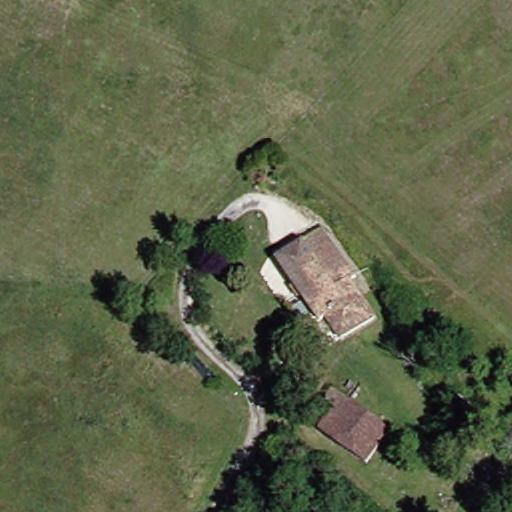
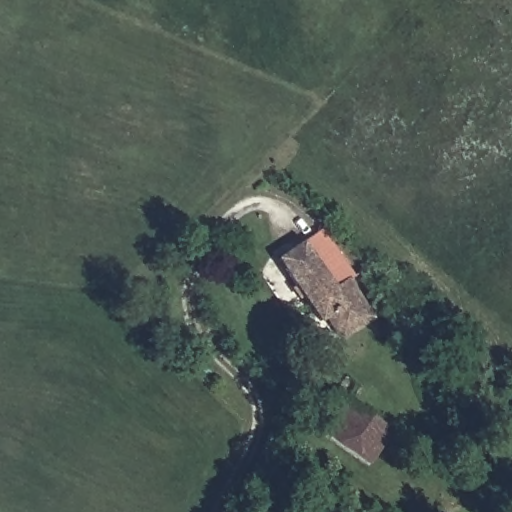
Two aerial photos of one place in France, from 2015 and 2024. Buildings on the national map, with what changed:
unchanged [(357,342),(339,317),(331,323),(285,255),(333,221),(374,279),(367,284),(390,320),(357,342)]
unchanged [(377,466),(333,434),(347,415),(335,406),(347,392),(357,401),(400,433),(377,466)]

